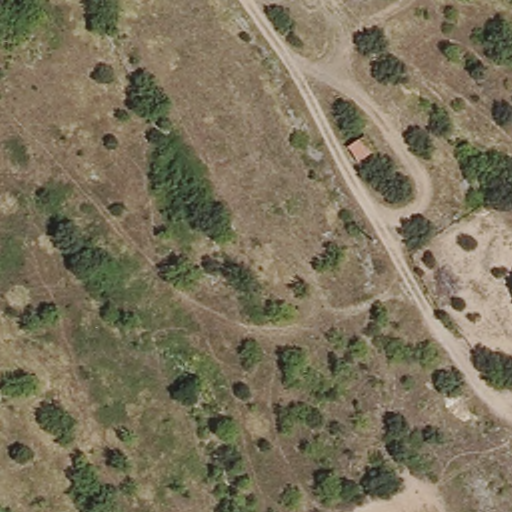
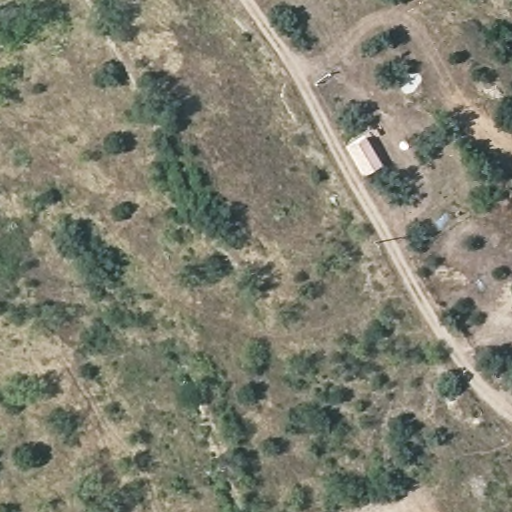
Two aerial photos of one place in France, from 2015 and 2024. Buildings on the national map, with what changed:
unchanged [(365,138),(375,152),(360,162),(350,148),(365,138)]

